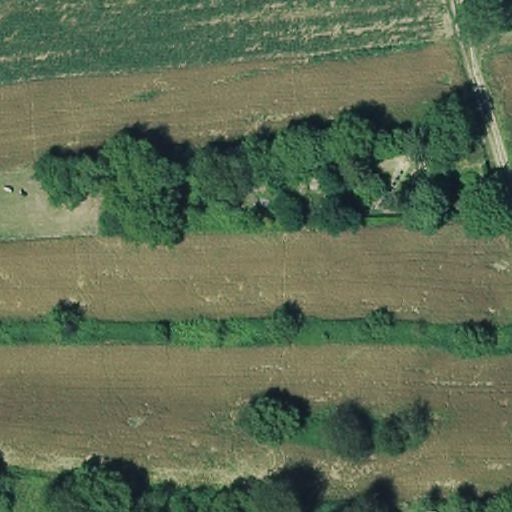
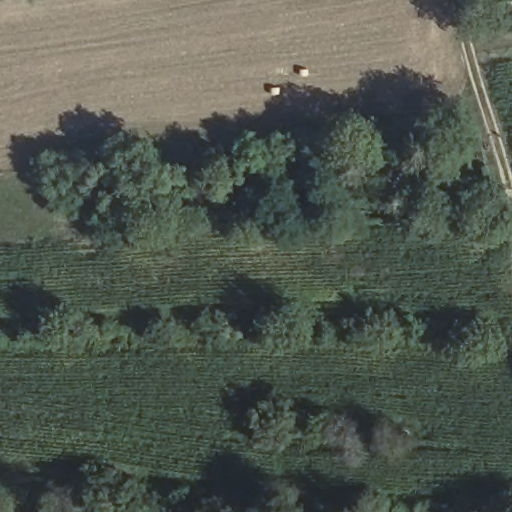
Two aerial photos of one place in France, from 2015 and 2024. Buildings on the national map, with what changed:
unchanged [(415,180),(395,182),(394,171),(376,172),(375,147),(405,145),(405,160),(414,160),(415,180)]

